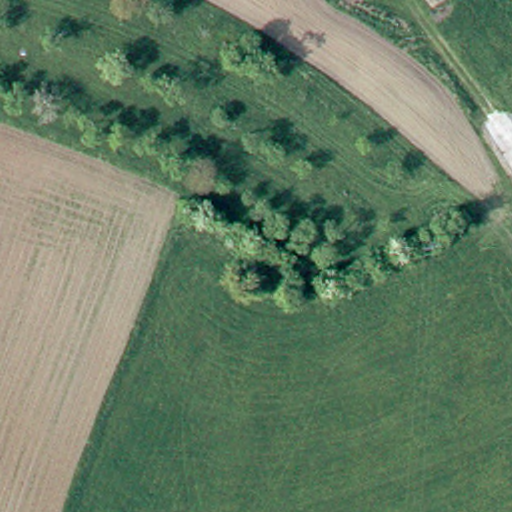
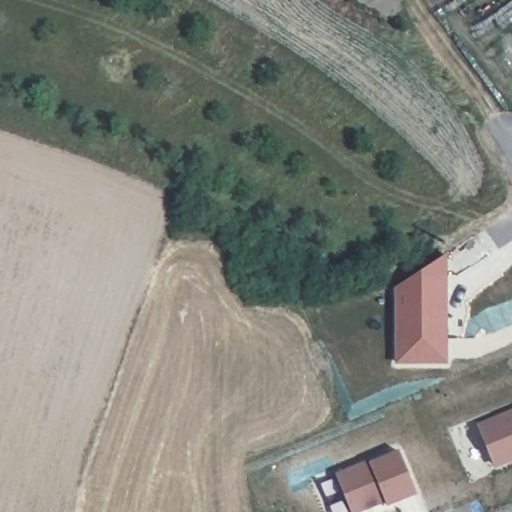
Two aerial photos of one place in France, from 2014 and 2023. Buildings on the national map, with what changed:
new [(395,287),(445,255),(445,362),(396,362),(395,287)]
new [(477,423),(512,409),(512,461),(495,468),(477,423)]
new [(371,462),(400,451),(416,492),(387,504),(384,498),(371,503),(372,506),(356,512),(351,512),(337,473),(370,460),(371,462)]

